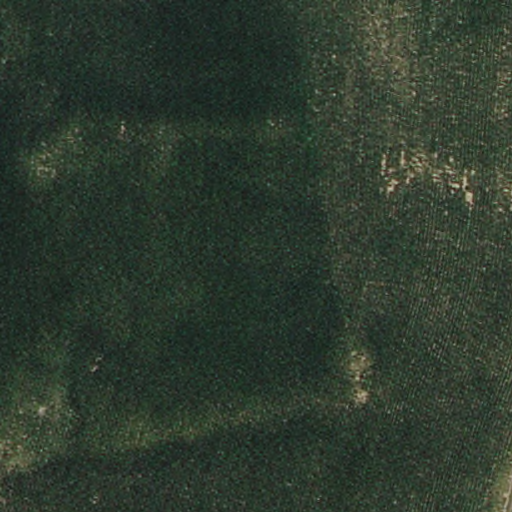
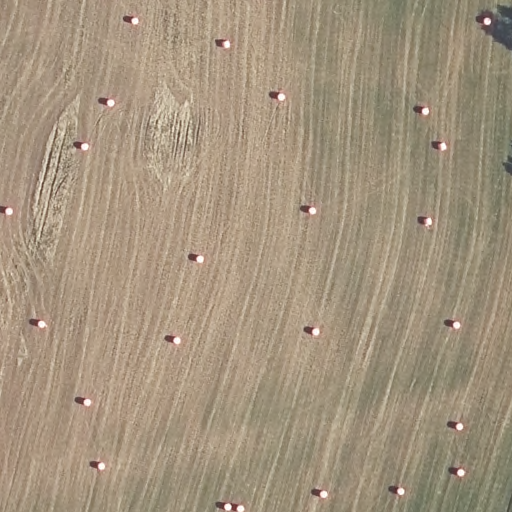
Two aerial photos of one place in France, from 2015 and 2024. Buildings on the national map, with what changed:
[]

